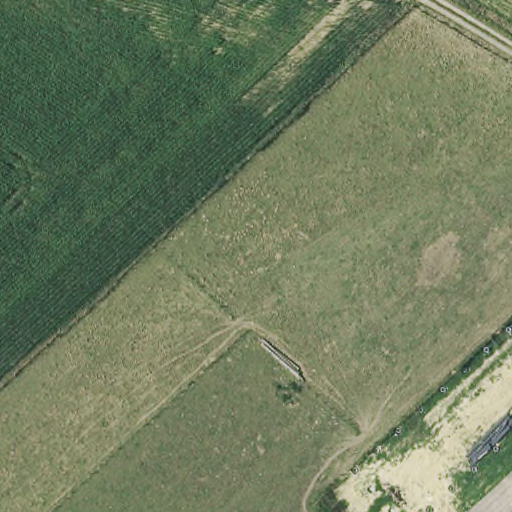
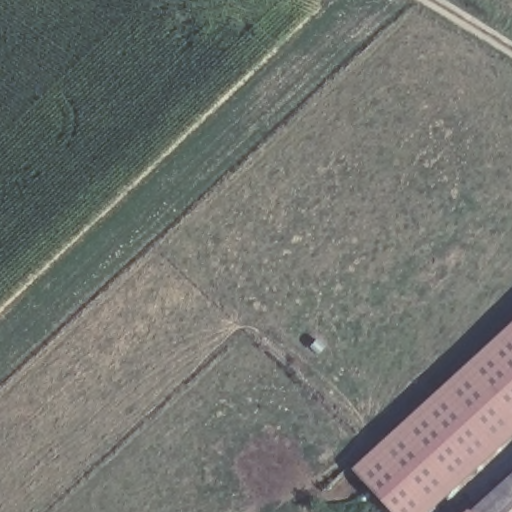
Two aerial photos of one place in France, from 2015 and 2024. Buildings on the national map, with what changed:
new [(393,512),(353,468),(512,325),(512,437),(431,512),(393,512)]
unchanged [(512,512),(473,512),(512,480),(512,512)]

